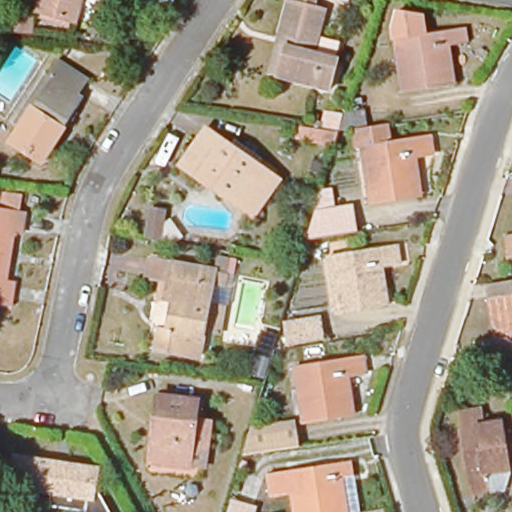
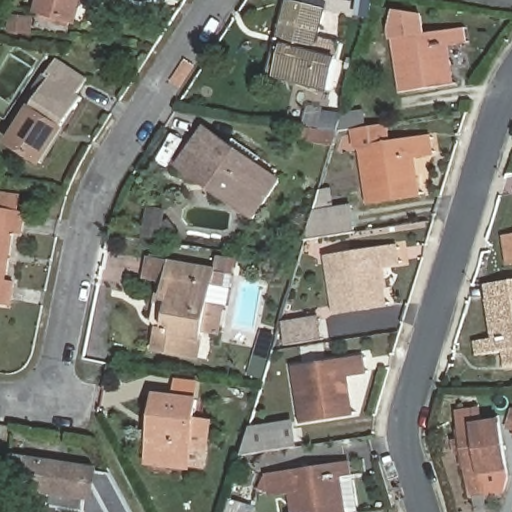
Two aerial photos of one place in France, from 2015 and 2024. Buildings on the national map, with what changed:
unchanged [(38,11),(41,0),(80,0),(75,20),(38,11)]
unchanged [(286,0),(316,0),(314,9),(323,12),(318,33),(341,38),(335,59),(326,91),(277,79),(268,77),(277,39),(285,3),(286,0)]
unchanged [(466,44),(446,48),(450,71),(441,73),(443,87),(405,93),(397,40),(391,41),(389,31),(395,10),(426,14),(425,35),(463,29),(466,44)]
unchanged [(16,12),(34,14),(32,29),(14,27),(16,12)]
unchanged [(88,81),(79,96),(84,99),(43,165),(12,146),(23,129),(17,124),(48,76),(57,60),(88,81)]
unchanged [(334,153),(311,145),(322,109),(348,115),(343,134),(334,153)]
unchanged [(436,156),(415,160),(419,183),(412,184),(414,201),(375,207),(366,153),(363,131),(388,126),(392,149),(433,141),(436,156)]
unchanged [(206,185),(184,170),(209,135),(273,180),(252,210),(248,215),(206,185)]
unchanged [(352,205),(356,230),(306,238),(314,210),(352,205)]
unchanged [(21,210),(18,232),(9,231),(2,280),(11,282),(8,307),(0,305),(0,207),(21,210)]
unchanged [(154,214),(169,217),(165,245),(150,244),(154,214)]
unchanged [(504,239),(512,238),(512,265),(508,265),(504,239)]
unchanged [(400,263),(383,265),(385,285),(379,287),(381,302),(341,308),(334,258),(398,247),(400,263)]
unchanged [(203,331),(197,361),(153,353),(157,332),(164,334),(170,302),(164,300),(167,285),(159,284),(145,281),(149,260),(172,265),(214,274),(233,277),(228,308),(223,334),(203,331)]
unchanged [(472,344),(492,340),(486,285),(512,282),(512,370),(505,371),(505,355),(477,360),(472,344)]
unchanged [(327,338),(292,344),(288,325),(324,319),(327,338)]
unchanged [(271,326),(282,329),(270,371),(259,368),(271,326)]
unchanged [(368,357),(370,371),(351,374),(354,397),(348,398),(350,413),(310,420),(302,368),(368,357)]
unchanged [(160,413),(163,392),(203,397),(193,467),(160,462),(154,461),(160,413)]
unchanged [(482,414),(484,429),(501,426),(508,473),(486,476),(488,497),(474,499),(462,418),(482,414)]
unchanged [(293,429),(297,453),(243,461),(250,436),(293,429)]
unchanged [(92,471),(91,479),(108,512),(76,512),(50,508),(52,494),(9,487),(13,459),(92,471)]
unchanged [(292,493),(270,497),(266,478),(288,474),(305,471),(355,463),(358,479),(339,482),(342,504),(334,506),(335,512),(295,512),(292,493)]
unchanged [(232,501),(259,509),(257,512),(228,512),(232,501)]

